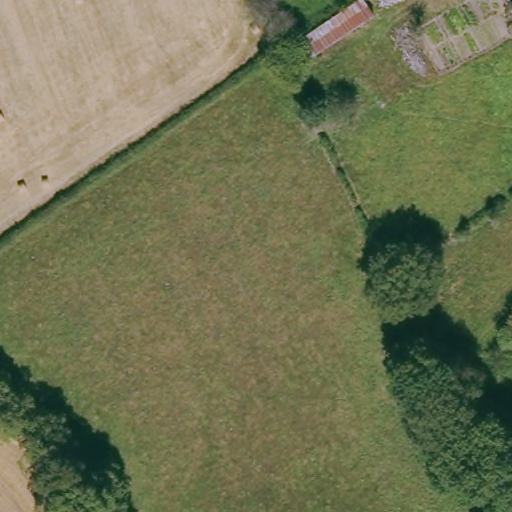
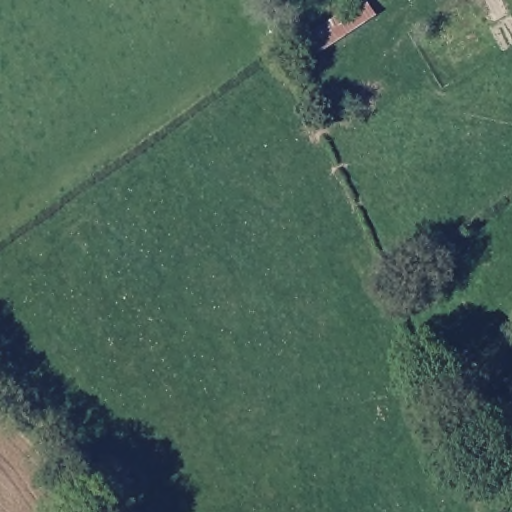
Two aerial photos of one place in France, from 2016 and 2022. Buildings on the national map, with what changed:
unchanged [(291,67),(280,44),(350,0),(365,0),(371,14),(291,67)]

